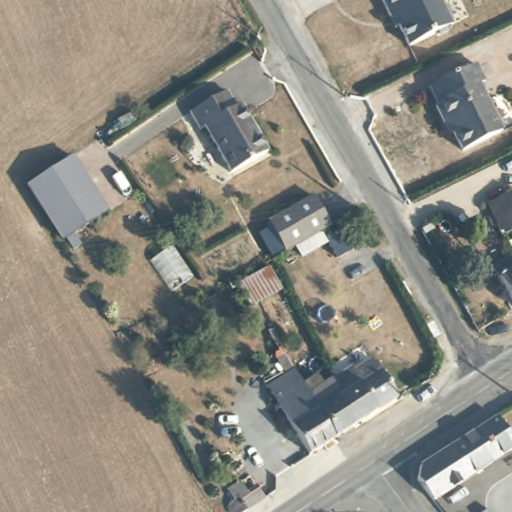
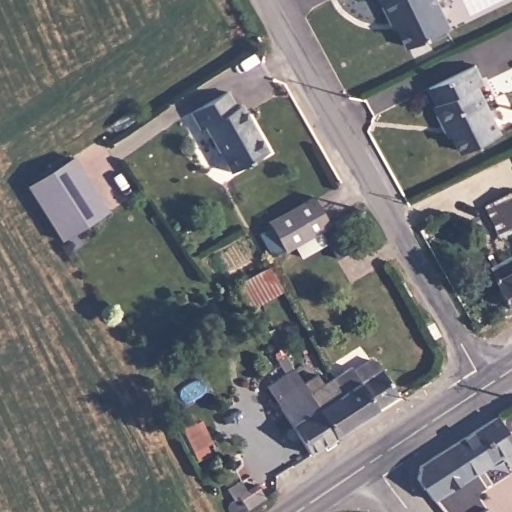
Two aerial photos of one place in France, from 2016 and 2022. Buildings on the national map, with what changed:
unchanged [(382,0),(439,0),(450,25),(448,26),(446,31),(437,35),(433,34),(408,46),(398,26),(395,27),(389,16),(382,0)]
unchanged [(476,60),(484,78),(477,83),(499,130),(463,148),(450,118),(443,121),(433,101),(438,99),(430,81),(476,60)]
unchanged [(232,170),(205,127),(198,129),(188,111),(223,88),(234,103),(240,101),(269,146),(232,170)]
unchanged [(102,205),(60,234),(23,180),(65,151),(102,205)]
unchanged [(330,220),(285,248),(270,222),(314,194),(330,220)]
unchanged [(485,207),(511,194),(512,196),(512,233),(503,238),(485,207)]
unchanged [(511,249),(512,251),(512,295),(493,259),(511,249)]
unchanged [(271,267),(285,290),(249,308),(236,281),(271,267)]
unchanged [(347,364),(353,371),(369,359),(392,399),(355,423),(326,378),(347,364)]
unchanged [(310,452),(275,402),(267,391),(294,371),(301,382),(314,373),(320,382),(326,378),(355,423),(336,436),(341,443),(328,453),(322,445),(310,452)]
unchanged [(512,448),(472,473),(449,443),(492,415),(512,440),(512,448)]
unchanged [(415,478),(418,463),(449,443),(472,473),(432,499),(415,478)]
unchanged [(243,512),(237,512),(235,511),(233,504),(240,498),(232,490),(244,482),(252,492),(263,485),(269,496),(243,512)]

